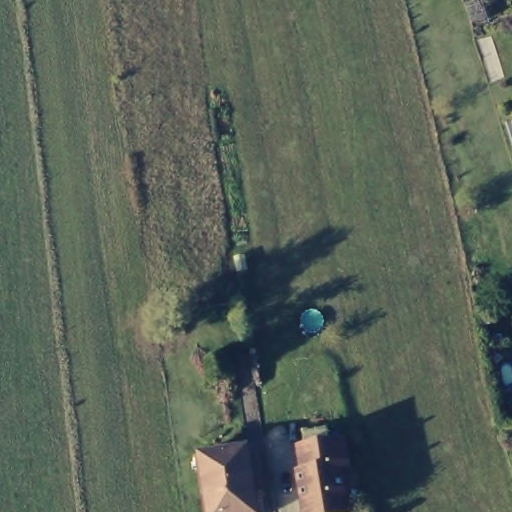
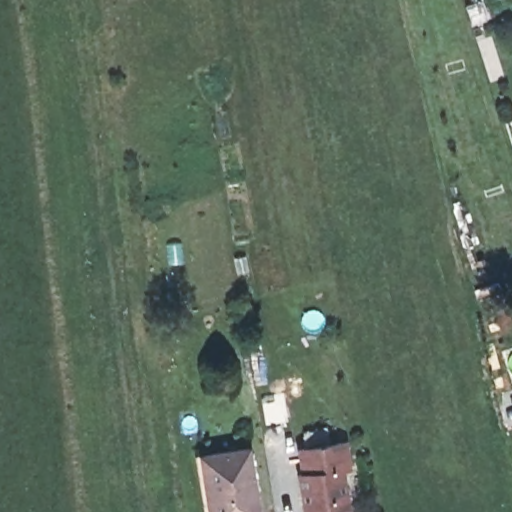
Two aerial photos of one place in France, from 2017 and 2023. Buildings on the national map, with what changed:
unchanged [(339,442),(343,467),(336,468),(343,512),(300,512),(294,474),(299,473),(295,448),(339,442)]
unchanged [(195,456),(200,456),(248,447),(259,512),(204,512),(195,456)]

